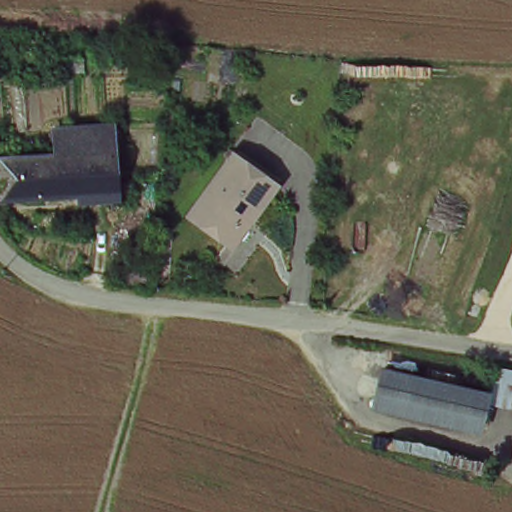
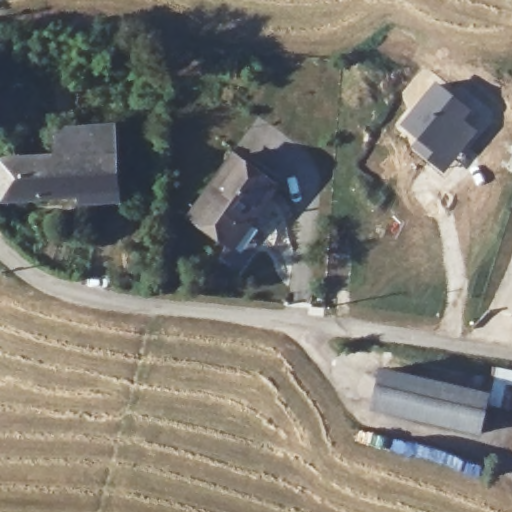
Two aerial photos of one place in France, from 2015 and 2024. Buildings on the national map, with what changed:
new [(435,79),(473,111),(465,120),(478,131),(443,173),(409,145),(415,139),(397,124),(435,79)]
unchanged [(0,169),(55,167),(55,142),(116,141),(117,205),(0,208),(0,169)]
unchanged [(233,156),(275,188),(249,224),(243,220),(225,245),(187,219),(233,156)]
unchanged [(382,369),(490,391),(480,428),(375,406),(382,369)]

